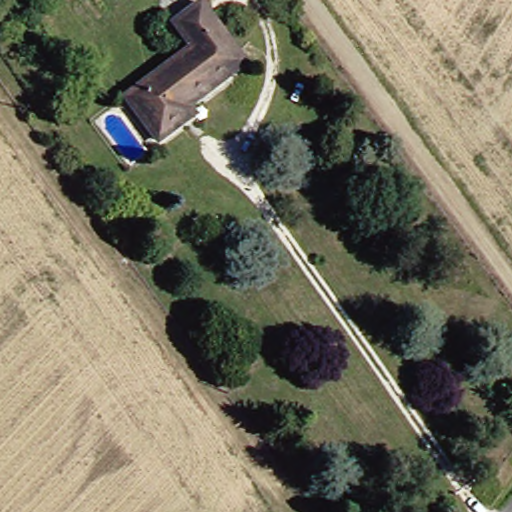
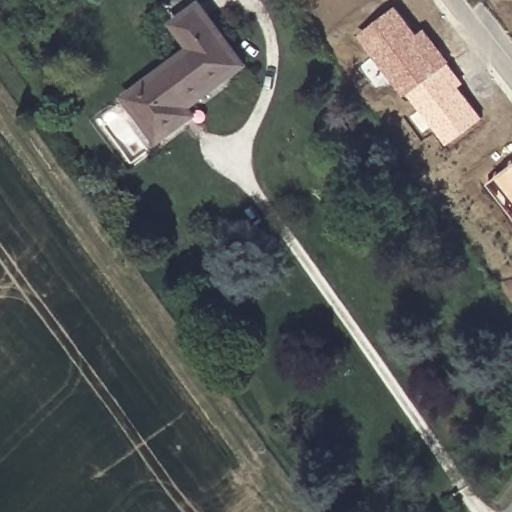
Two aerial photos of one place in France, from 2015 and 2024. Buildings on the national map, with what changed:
unchanged [(154,135),(122,92),(188,43),(182,34),(170,18),(194,0),(196,0),(240,58),(184,102),(190,110),(181,116),(154,135)]
new [(397,6),(418,34),(426,28),(451,61),(450,62),(465,83),(460,86),(485,118),(447,145),(409,93),(404,96),(358,36),(397,6)]
new [(488,183),(512,166),(512,213),(488,183)]

